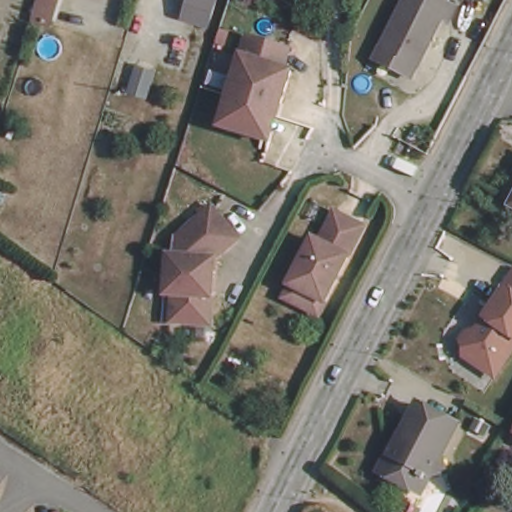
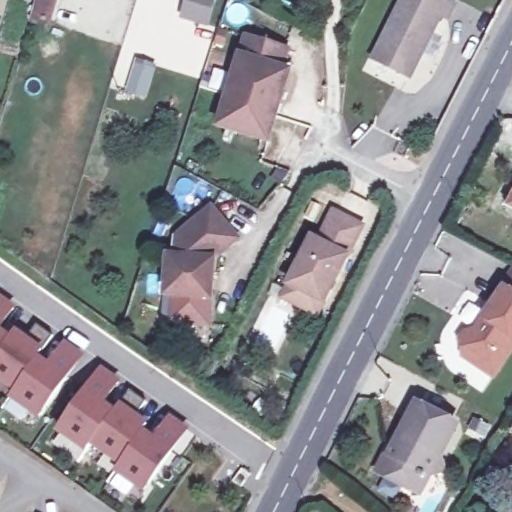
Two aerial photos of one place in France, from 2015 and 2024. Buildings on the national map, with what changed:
unchanged [(36,15),(40,0),(61,0),(55,20),(36,15)]
unchanged [(181,19),(186,0),(218,0),(211,27),(181,19)]
unchanged [(446,22),(440,20),(407,81),(371,62),(403,0),(438,0),(453,8),(446,22)]
unchanged [(259,139),(218,127),(246,37),(288,49),(283,69),(291,71),(280,105),(269,142),(259,139)]
unchanged [(408,149),(402,161),(390,155),(398,144),(408,149)]
unchanged [(168,300),(171,261),(178,262),(179,242),(214,212),(241,244),(218,264),(211,330),(174,327),(166,327),(168,300)]
unchanged [(311,245),(316,248),(331,220),(359,235),(319,308),(313,321),(281,302),(288,290),(311,245)]
unchanged [(464,356),(461,339),(467,331),(477,330),(484,319),(504,288),(512,293),(512,347),(493,376),(464,356)]
new [(0,326),(0,301),(11,310),(0,326)]
new [(14,392),(0,381),(0,346),(3,347),(8,340),(24,351),(39,330),(52,339),(31,368),(41,375),(61,346),(79,358),(36,418),(9,398),(14,392)]
new [(111,415),(127,393),(143,405),(128,427),(140,437),(136,443),(145,450),(166,421),(183,433),(139,493),(113,474),(118,467),(90,446),(85,453),(56,432),(99,372),(115,385),(99,407),(103,410),(111,415)]
unchanged [(458,426),(443,457),(444,464),(437,467),(436,467),(431,470),(419,492),(383,473),(396,448),(398,449),(404,437),(420,406),(458,426)]

